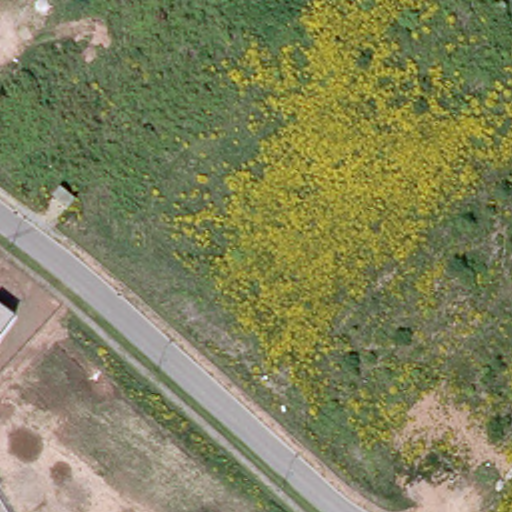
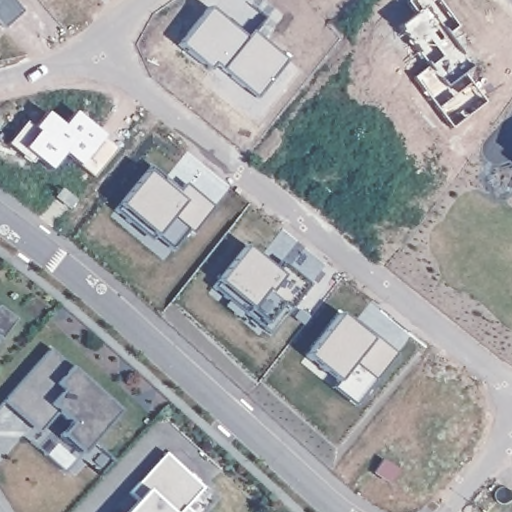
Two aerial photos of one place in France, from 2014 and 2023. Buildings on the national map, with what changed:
new [(4,28),(0,24),(0,0),(12,0),(22,13),(4,28)]
new [(446,36),(470,69),(463,74),(485,104),(452,130),(412,78),(427,68),(397,27),(413,14),(405,3),(409,0),(436,0),(457,27),(446,36)]
new [(245,35),(250,29),(264,40),(285,58),(255,95),(213,60),(208,66),(177,42),(207,4),(258,46),(245,35)]
new [(128,223),(114,211),(150,167),(165,179),(160,183),(175,196),(184,185),(212,208),(213,207),(214,208),(193,234),(188,230),(172,250),(155,236),(151,241),(128,223)]
new [(226,299),(212,288),(245,246),(260,258),(258,260),(273,272),(282,262),(310,284),(290,310),(270,334),(226,299)]
unchanged [(0,340),(0,306),(14,315),(0,340)]
new [(305,357),(340,314),(353,324),(356,320),(357,322),(396,353),(397,354),(363,394),(354,407),(330,388),(336,381),(305,357)]
new [(71,369),(120,412),(81,454),(60,434),(71,423),(58,411),(38,433),(3,403),(50,351),(71,369)]
new [(137,500),(129,493),(165,454),(203,489),(185,508),(189,512),(126,512),(137,500)]

